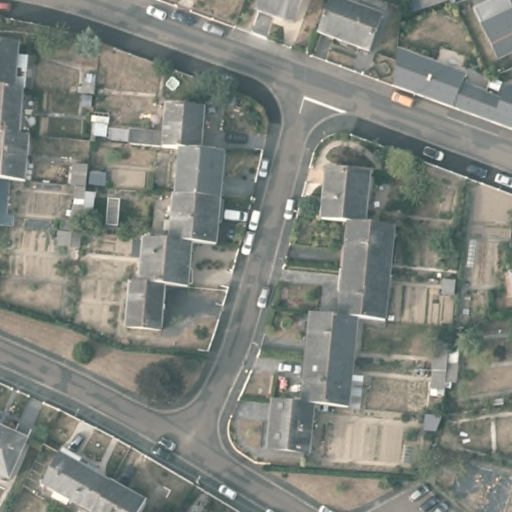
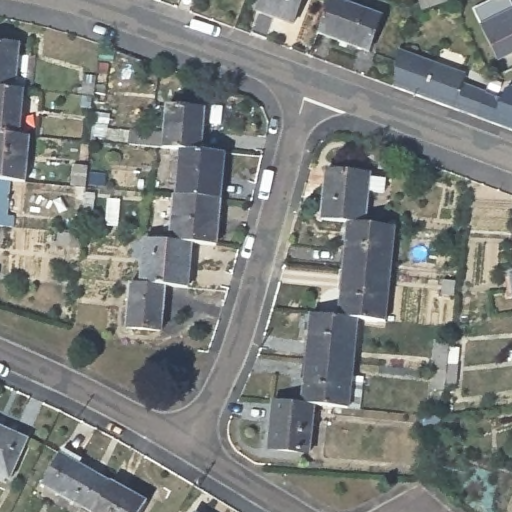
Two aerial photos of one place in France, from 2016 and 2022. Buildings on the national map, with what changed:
unchanged [(295,18),(259,5),(261,0),(302,0),(295,18)]
unchanged [(332,0),(344,0),(383,15),(370,50),(320,33),(332,0)]
unchanged [(417,4),(416,0),(428,0),(417,4)]
unchanged [(512,52),(500,57),(477,7),(493,0),(511,0),(512,2),(512,52)]
unchanged [(18,42),(15,87),(0,86),(0,41),(18,42)]
unchanged [(461,86),(501,102),(506,87),(512,90),(512,131),(395,86),(396,49),(465,74),(461,86)]
unchanged [(15,87),(23,87),(20,133),(0,132),(0,86),(15,87)]
unchanged [(168,104),(208,107),(204,149),(178,146),(165,145),(168,104)]
unchanged [(20,133),(31,134),(28,180),(0,178),(0,132),(20,133)]
unchanged [(222,197),(173,192),(178,146),(204,149),(227,151),(222,197)]
unchanged [(350,221),(323,219),(329,169),(371,174),(366,223),(350,221)]
unchanged [(218,242),(194,240),(165,237),(170,192),(173,192),(222,197),(218,242)]
unchanged [(16,213),(15,224),(0,223),(0,212),(16,213)]
unchanged [(395,226),(390,272),(345,268),(350,221),(366,223),(395,226)]
unchanged [(194,240),(190,285),(167,283),(142,281),(146,235),(165,237),(194,240)]
unchanged [(358,316),(340,315),(345,268),(390,272),(385,319),(358,316)]
unchanged [(142,281),(167,283),(163,328),(129,326),(132,280),(142,281)]
unchanged [(309,357),(313,312),(340,315),(358,316),(354,362),(309,357)]
unchanged [(314,403),(304,402),(309,357),(354,362),(350,407),(314,403)]
unchanged [(304,402),(314,403),(310,451),(268,447),(273,399),(304,402)]
unchanged [(29,438),(11,477),(0,472),(0,425),(29,438)]
unchanged [(112,481),(96,510),(45,482),(61,451),(113,480),(112,481)]
unchanged [(142,512),(95,512),(96,510),(112,481),(147,501),(142,512)]
unchanged [(197,512),(196,512),(196,511),(197,512)]

